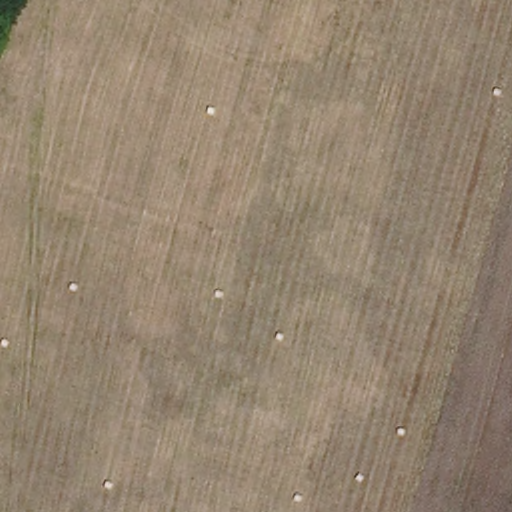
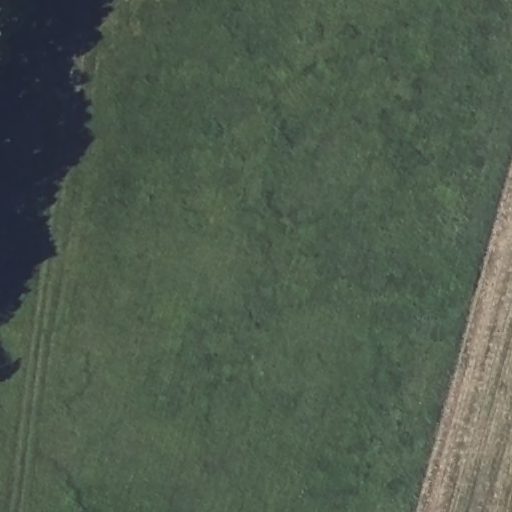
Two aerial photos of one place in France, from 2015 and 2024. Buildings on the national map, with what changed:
[]

